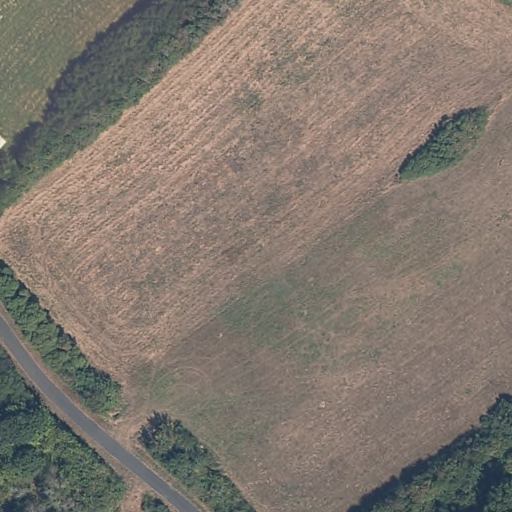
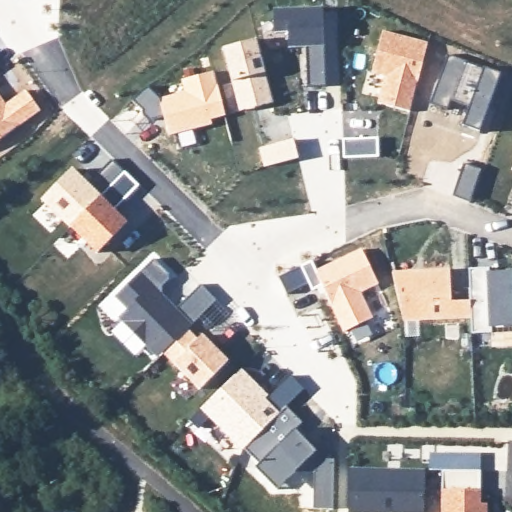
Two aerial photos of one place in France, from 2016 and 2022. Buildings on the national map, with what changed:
new [(307,49),(288,49),(288,33),(274,34),(272,12),(323,10),(326,49),(326,88),(307,88),(307,49)]
new [(384,77),(372,73),(382,32),(428,43),(411,113),(377,106),(384,77)]
new [(256,42),(273,105),(256,109),(254,101),(237,105),(223,51),(256,42)]
new [(448,57),(483,69),(500,74),(479,133),(462,127),(470,106),(450,101),(448,110),(430,104),(448,57)]
new [(147,87),(161,100),(186,93),(183,82),(214,73),(226,116),(210,119),(212,126),(168,137),(164,119),(147,123),(143,110),(132,103),(147,87)]
new [(26,90),(41,112),(0,140),(0,96),(6,105),(26,90)]
new [(293,142),(298,160),(264,169),(259,151),(293,142)]
new [(72,169),(89,184),(113,159),(125,172),(71,228),(44,200),(72,169)]
new [(298,267),(312,261),(316,270),(362,249),(379,284),(361,293),(373,319),(342,334),(320,287),(311,291),(307,284),(286,295),(278,278),(298,267)]
new [(202,338),(228,364),(199,392),(163,356),(158,361),(149,353),(118,321),(126,312),(115,300),(153,261),(168,277),(168,283),(162,289),(162,298),(176,312),(200,287),(216,303),(187,332),(198,343),(202,338)]
new [(485,268),(487,274),(510,272),(512,272),(512,328),(492,329),(491,335),(471,335),(471,321),(470,304),(468,270),(485,268)]
new [(450,273),(451,304),(470,304),(471,321),(403,324),(392,275),(450,273)]
new [(242,368),(270,397),(291,377),(303,390),(286,408),(243,452),(208,419),(197,430),(189,422),(242,368)]
new [(286,408),(301,423),(295,429),(317,451),(317,459),(334,459),(333,507),(315,506),(316,473),(294,473),(276,491),(243,452),(286,408)]
new [(349,477),(349,472),(379,472),(425,473),(425,512),(349,512),(349,477)]
new [(443,473),(481,474),(481,507),(487,507),(487,512),(443,512),(443,473)]

